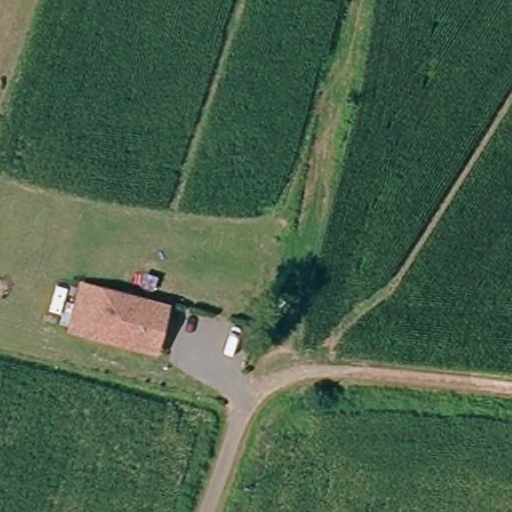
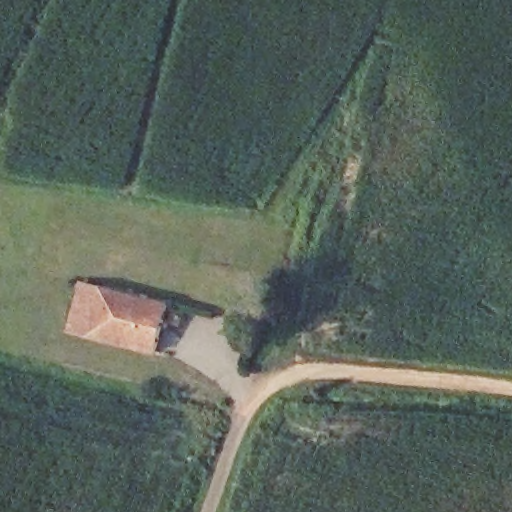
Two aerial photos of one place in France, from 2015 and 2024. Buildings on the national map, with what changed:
unchanged [(97,338),(81,336),(75,335),(82,290),(89,292),(103,293),(165,301),(158,346),(97,338)]

